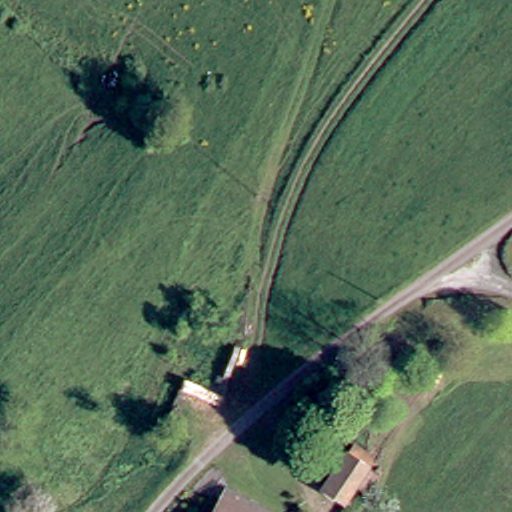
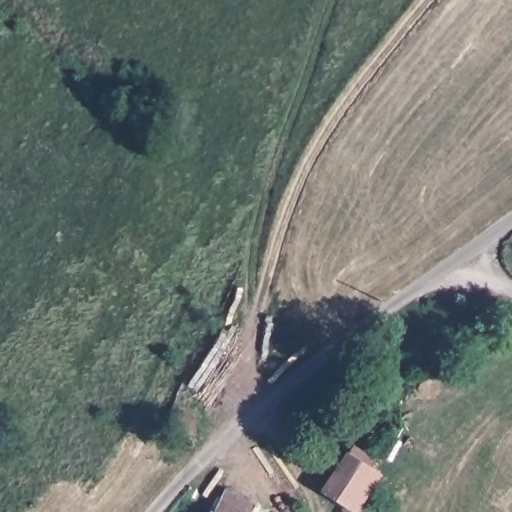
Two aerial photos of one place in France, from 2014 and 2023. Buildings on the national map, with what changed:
unchanged [(347,507),(325,492),(355,448),(377,463),(347,507)]
unchanged [(270,512),(222,512),(232,493),(270,512)]

